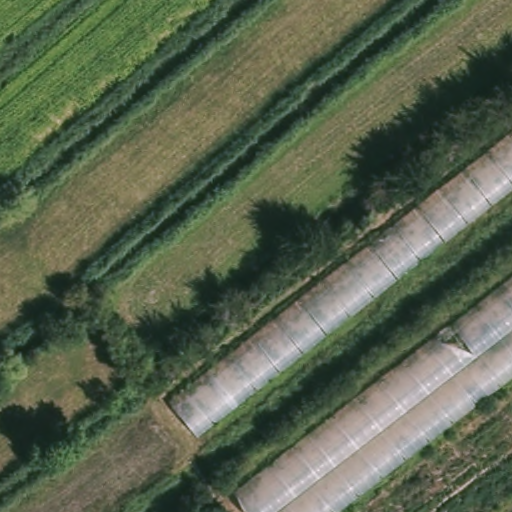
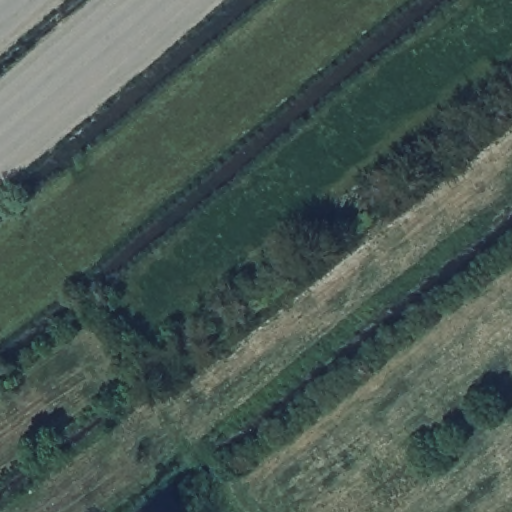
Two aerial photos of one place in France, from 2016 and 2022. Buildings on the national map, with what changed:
demolished [(512,193),(193,446),(163,410),(512,132),(512,193)]
demolished [(512,495),(490,512),(246,512),(236,497),(512,283),(512,495)]

